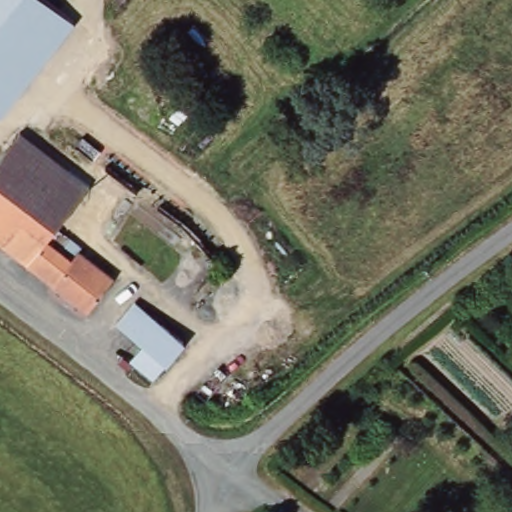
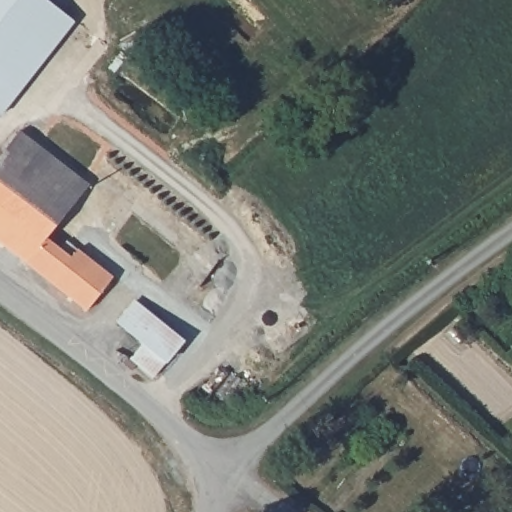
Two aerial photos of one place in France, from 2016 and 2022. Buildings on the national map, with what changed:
unchanged [(5,116),(0,112),(0,0),(53,0),(80,21),(5,116)]
unchanged [(95,184),(53,237),(77,257),(83,249),(119,277),(94,310),(32,262),(50,239),(28,222),(10,245),(0,237),(0,163),(26,131),(29,134),(95,184)]
unchanged [(136,358),(137,358),(149,343),(122,322),(141,302),(190,341),(160,376),(159,377),(136,358)]

